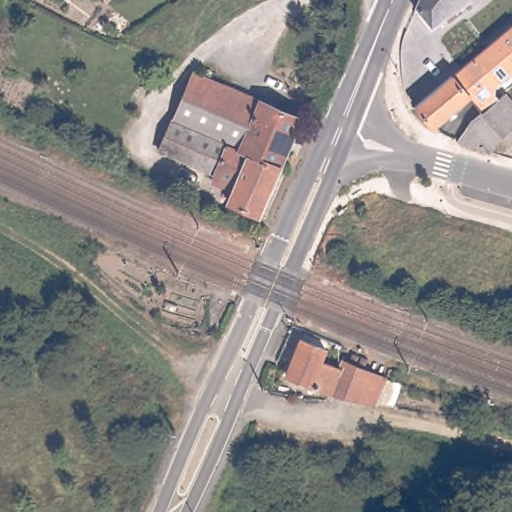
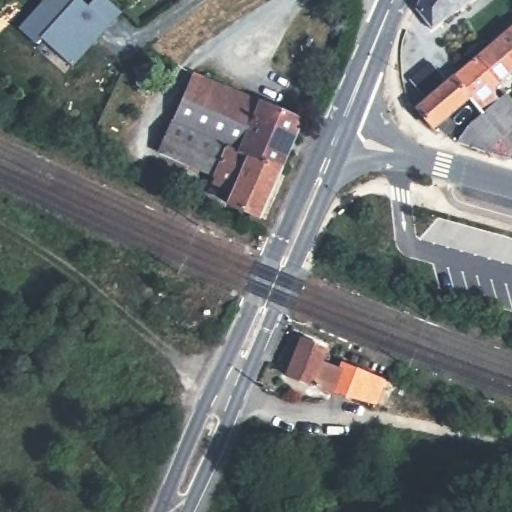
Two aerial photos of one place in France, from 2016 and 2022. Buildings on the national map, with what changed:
new [(43,0),(83,0),(88,4),(92,0),(110,0),(121,10),(73,66),(40,38),(35,43),(17,28),(43,0)]
unchanged [(462,6),(460,4),(437,24),(419,3),(421,0),(470,0),(462,6)]
unchanged [(512,70),(498,82),(497,86),(497,90),(498,94),(499,95),(483,109),(471,93),(435,122),(430,118),(413,100),(512,19),(512,70)]
unchanged [(180,92),(190,70),(196,72),(198,68),(267,98),(306,115),(285,163),(265,210),(230,195),(235,185),(218,177),(221,170),(165,145),(154,140),(167,111),(176,90),(180,92)]
unchanged [(499,95),(505,91),(512,100),(512,126),(500,137),(496,147),(458,137),(473,118),(483,109),(499,95)]
unchanged [(348,395),(318,386),(289,375),(302,338),(329,348),(324,362),(341,368),(345,360),(388,377),(378,402),(348,395)]

